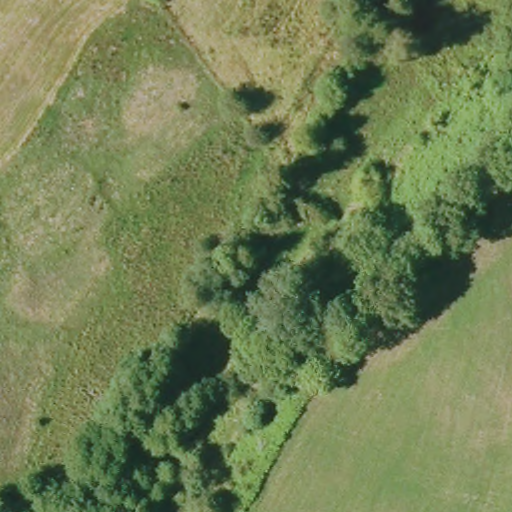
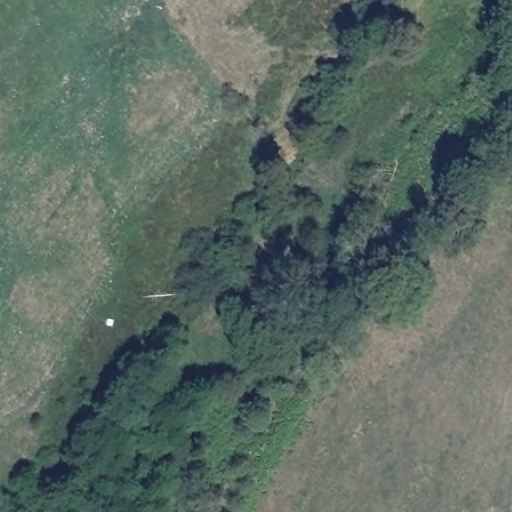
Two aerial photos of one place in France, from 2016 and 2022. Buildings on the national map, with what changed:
[]

